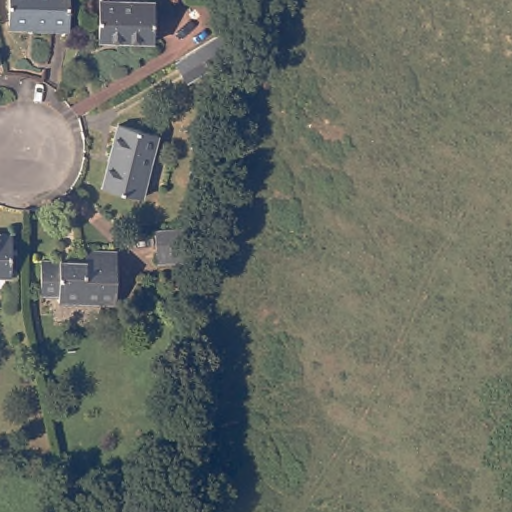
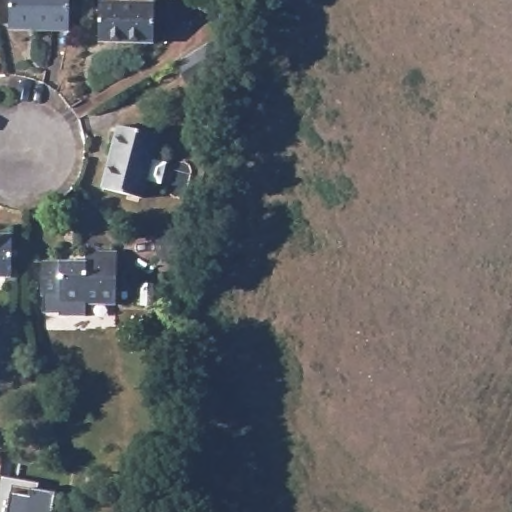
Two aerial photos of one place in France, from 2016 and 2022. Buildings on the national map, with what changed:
unchanged [(35,32),(35,28),(9,28),(9,0),(70,0),(70,33),(35,32)]
unchanged [(159,2),(159,41),(105,42),(104,3),(159,2)]
unchanged [(210,43),(221,64),(190,82),(178,60),(210,43)]
unchanged [(119,128),(158,136),(143,199),(105,190),(119,128)]
unchanged [(161,263),(161,258),(163,229),(194,231),(191,259),(190,265),(161,263)]
unchanged [(13,273),(0,273),(0,232),(15,233),(13,273)]
unchanged [(82,303),(54,303),(54,293),(38,293),(38,259),(83,259),(83,249),(114,249),(114,294),(113,303),(82,303)]
new [(0,494),(3,478),(44,485),(42,492),(61,496),(58,512),(0,512),(0,494)]

